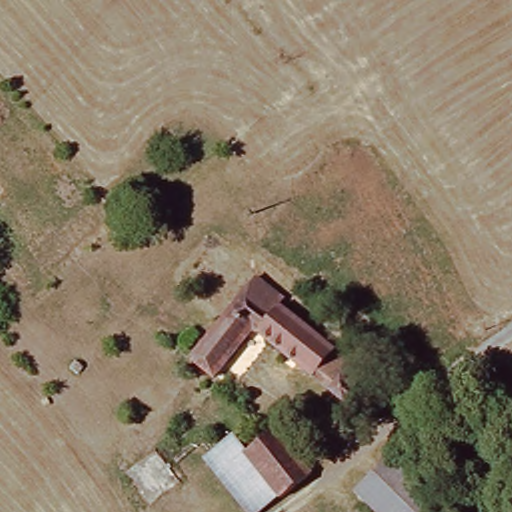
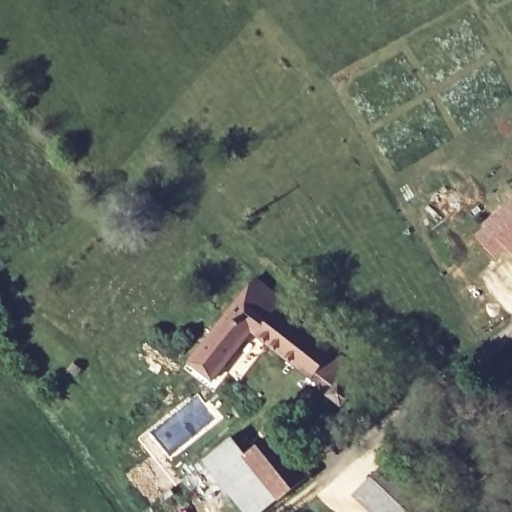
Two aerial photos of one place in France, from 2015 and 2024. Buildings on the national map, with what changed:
new [(512,252),(507,247),(497,257),(479,236),(490,227),(487,224),(512,202),(512,252)]
unchanged [(332,384),(352,401),(340,413),(254,335),(212,382),(189,362),(244,297),(270,318),(277,310),(345,372),(332,384)]
unchanged [(204,461),(226,445),(236,455),(251,447),(257,452),(276,440),(312,481),(275,508),(267,501),(253,512),(242,512),(204,461)]
unchanged [(435,509),(430,512),(376,512),(369,502),(411,475),(435,509)]

